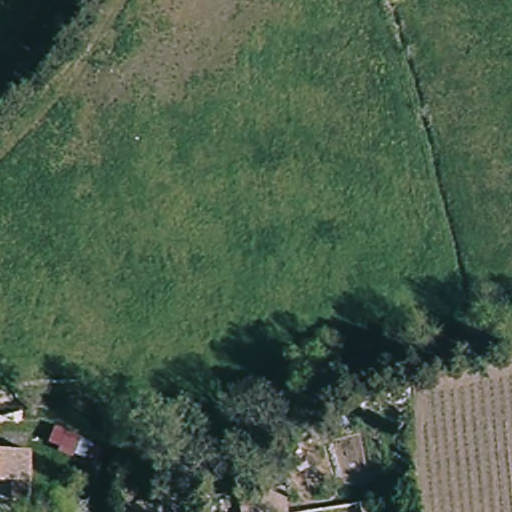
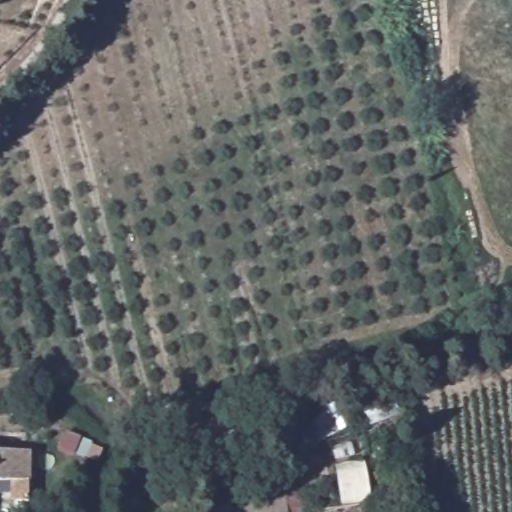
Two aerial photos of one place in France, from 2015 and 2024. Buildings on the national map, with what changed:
unchanged [(24,494),(10,493),(10,476),(0,476),(0,444),(26,445),(24,494)]
unchanged [(131,457),(131,469),(115,469),(116,456),(131,457)]

